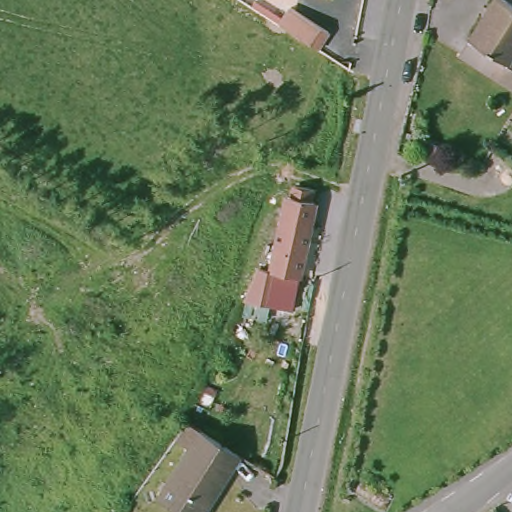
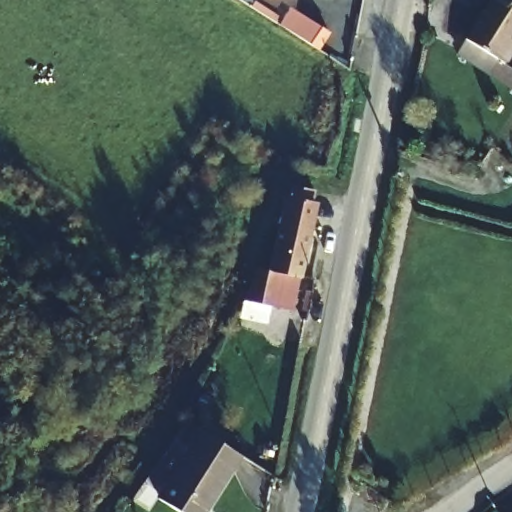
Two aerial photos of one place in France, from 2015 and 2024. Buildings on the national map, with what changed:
unchanged [(496,0),(504,0),(512,5),(512,60),(500,79),(462,56),(496,0)]
unchanged [(289,5),(327,29),(315,47),(277,22),(289,5)]
unchanged [(257,299),(259,291),(265,264),(277,266),(285,230),(288,221),(284,219),(297,185),(302,173),(307,174),(318,176),(315,198),(318,198),(302,272),(282,268),(276,293),(275,302),(257,299)]
unchanged [(185,512),(163,499),(198,445),(185,436),(186,432),(190,423),(205,433),(243,457),(208,512),(185,512)]

